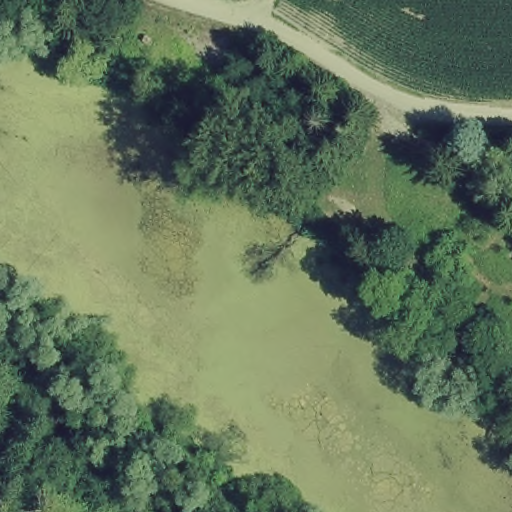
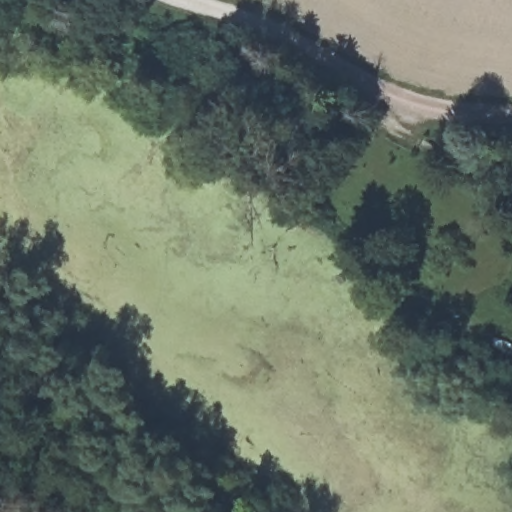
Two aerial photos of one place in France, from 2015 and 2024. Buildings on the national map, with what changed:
[]

